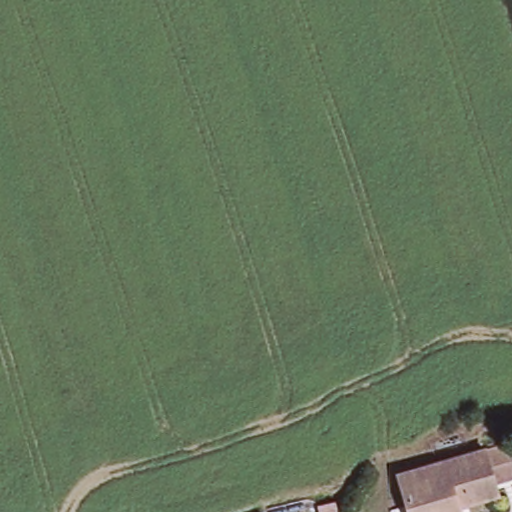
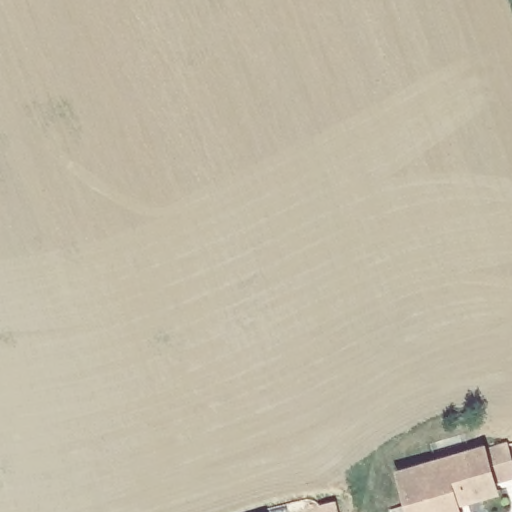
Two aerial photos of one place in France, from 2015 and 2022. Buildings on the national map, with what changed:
unchanged [(505,452),(512,474),(512,478),(490,486),(492,494),(469,502),(467,494),(452,500),(456,512),(407,512),(395,476),(477,448),(480,460),(505,452)]

